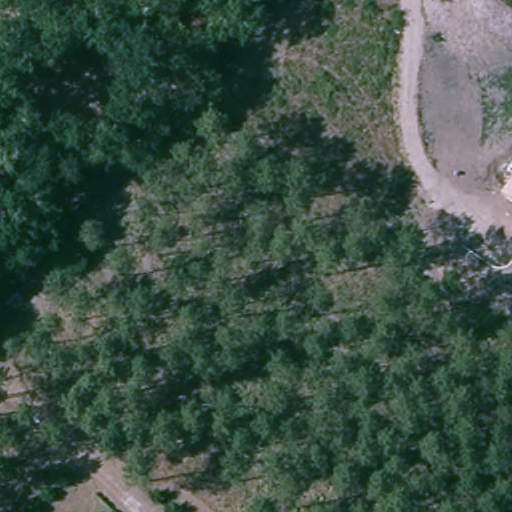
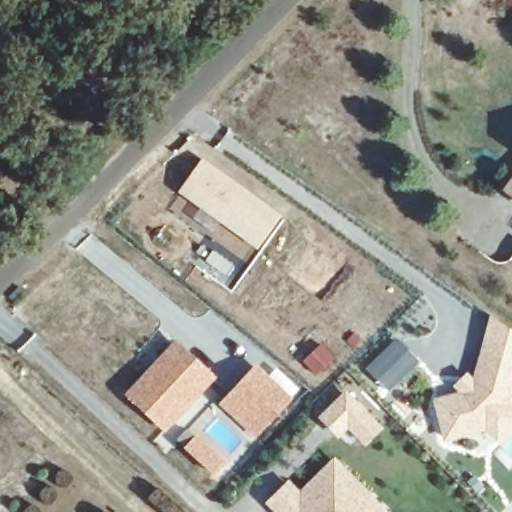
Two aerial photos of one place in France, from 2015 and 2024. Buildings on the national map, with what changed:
new [(282,216),(257,251),(177,193),(203,159),(282,216)]
unchanged [(512,174),(512,199),(501,192),(512,174)]
new [(421,361),(391,393),(365,369),(397,338),(421,361)]
new [(202,368),(190,383),(200,392),(164,430),(127,396),(176,343),(202,368)]
new [(512,402),(511,406),(512,407),(512,429),(497,442),(487,431),(445,441),(432,400),(458,393),(452,388),(467,373),(473,380),(480,353),(512,362),(512,402)]
new [(292,397),(256,438),(220,405),(256,364),(292,397)]
new [(382,429),(363,446),(349,431),(340,439),(317,418),(345,391),(382,429)]
new [(386,512),(272,512),(262,503),(287,480),(299,492),(333,458),(387,511),(386,512)]

